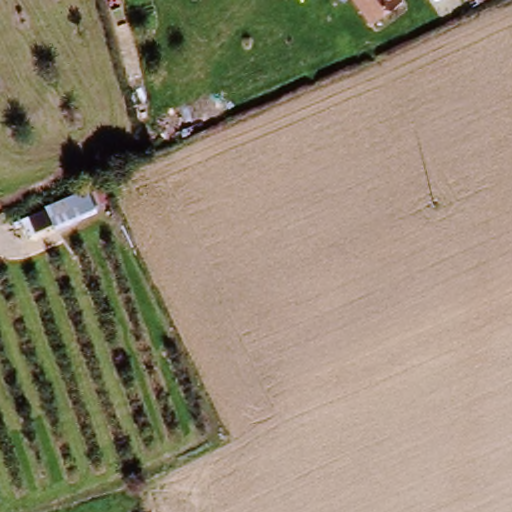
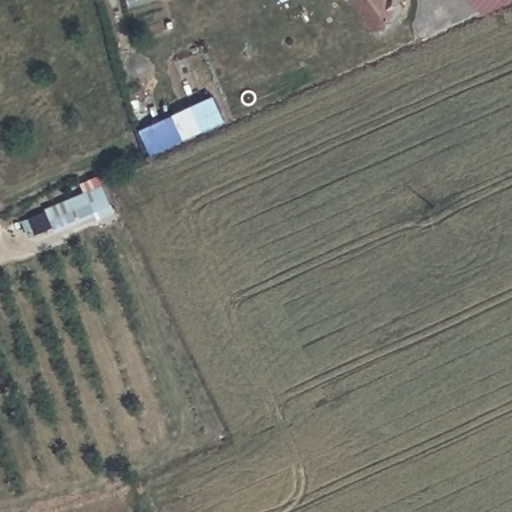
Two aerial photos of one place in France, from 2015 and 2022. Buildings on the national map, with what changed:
unchanged [(399,15),(367,31),(352,0),(392,0),(399,15)]
demolished [(477,13),(470,0),(498,0),(477,13)]
new [(226,121),(151,155),(139,128),(213,94),(226,121)]
unchanged [(21,221),(103,183),(111,200),(95,208),(97,214),(57,232),(53,227),(30,237),(21,221)]

